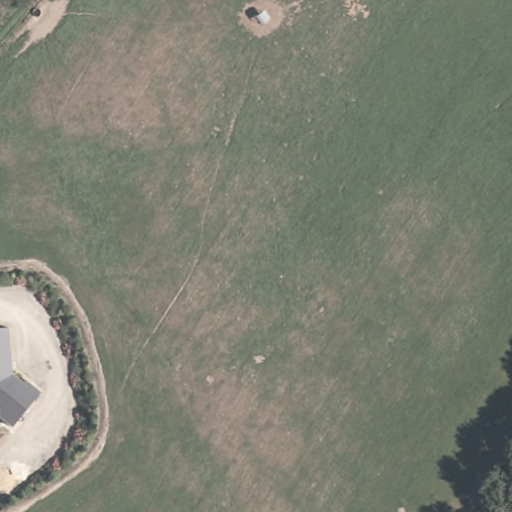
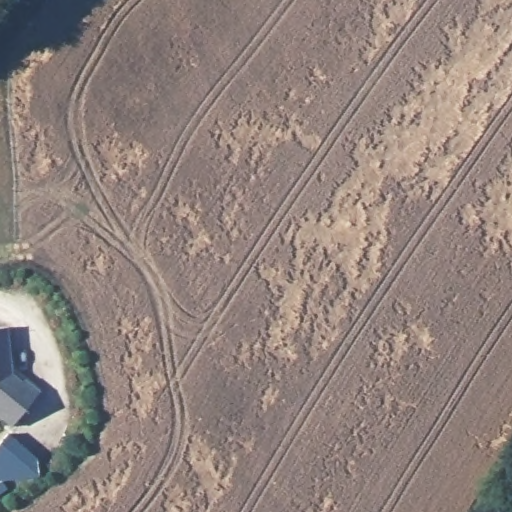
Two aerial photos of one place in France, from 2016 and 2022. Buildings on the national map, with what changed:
unchanged [(12,374),(38,394),(12,426),(0,415),(0,414),(2,411),(0,410),(0,329),(9,329),(12,374)]
new [(37,457),(40,476),(0,479),(0,443),(8,433),(37,457)]

